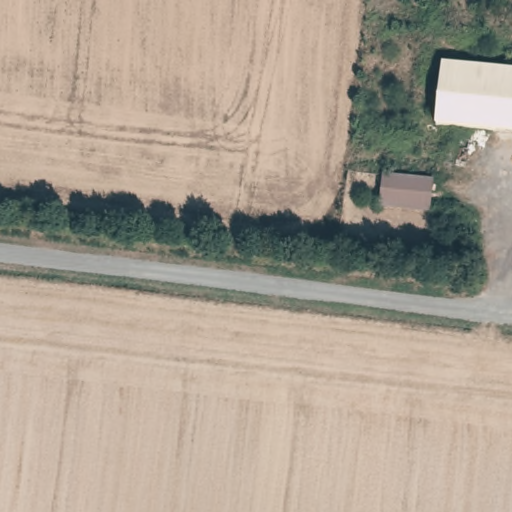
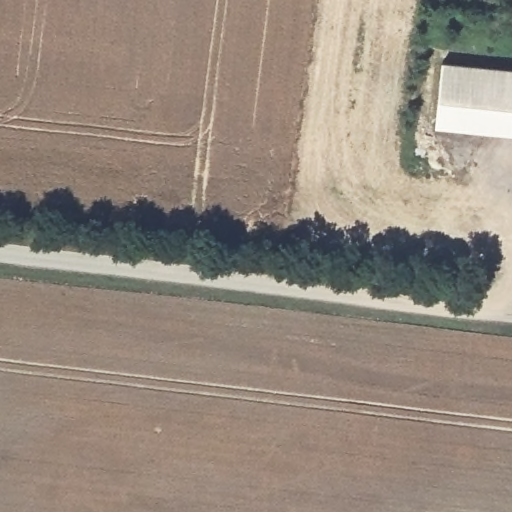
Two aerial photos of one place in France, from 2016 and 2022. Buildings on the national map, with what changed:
unchanged [(442,64),(512,72),(512,133),(436,125),(442,64)]
demolished [(385,174),(434,179),(432,211),(382,205),(385,174)]

